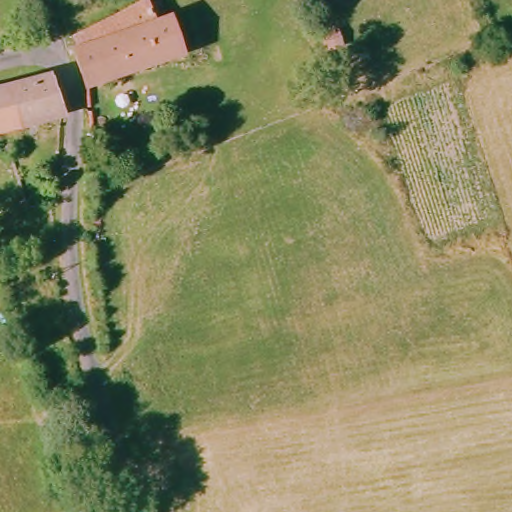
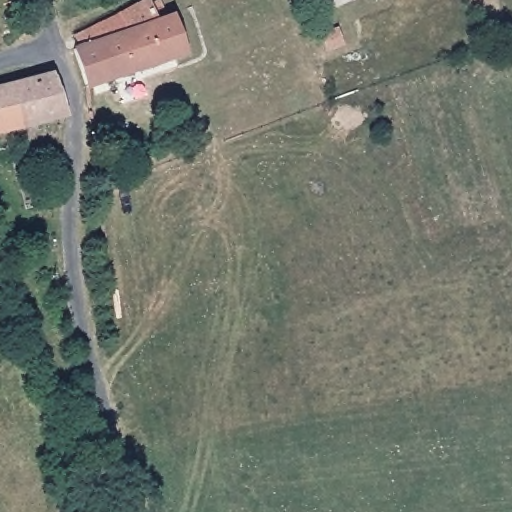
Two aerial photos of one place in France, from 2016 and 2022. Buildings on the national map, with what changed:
unchanged [(91,96),(87,98),(75,59),(79,56),(77,46),(151,7),(157,34),(176,27),(185,62),(159,72),(91,96)]
unchanged [(0,90),(51,77),(62,117),(0,131),(0,90)]

